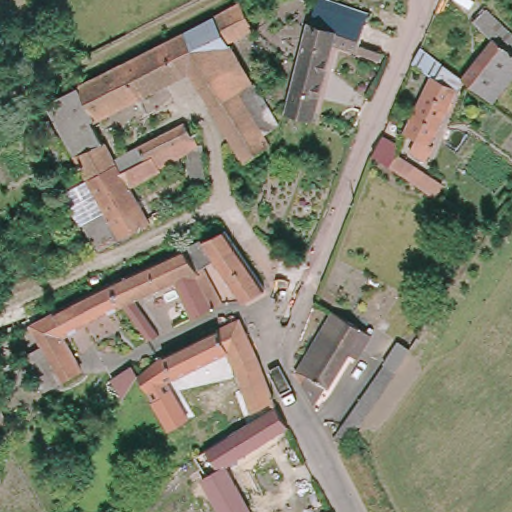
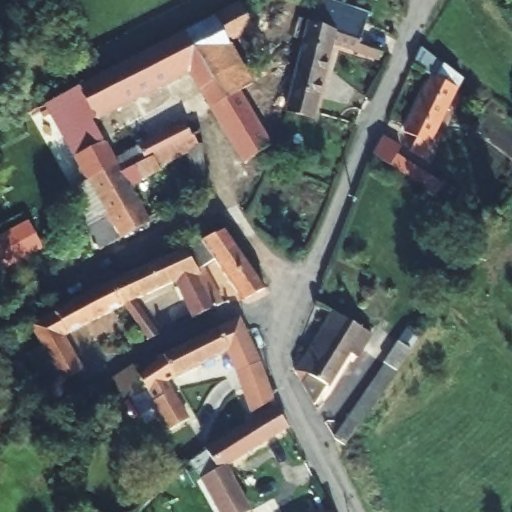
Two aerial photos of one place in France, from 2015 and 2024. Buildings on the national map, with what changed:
unchanged [(261,25),(245,35),(238,40),(282,118),(268,126),(277,142),(252,157),(235,127),(203,72),(102,129),(87,102),(82,93),(105,80),(157,52),(176,41),(197,29),(248,0),(261,25)]
unchanged [(301,75),(301,73),(313,32),(313,30),(321,0),(337,0),(375,13),(367,39),(390,48),(388,55),(341,38),(317,115),(292,107),(301,75)]
demolished [(465,79),(486,46),(463,30),(473,14),(496,30),(488,43),(512,60),(512,82),(499,103),(465,79)]
unchanged [(418,53),(477,92),(472,99),(464,95),(429,148),(433,151),(424,165),(408,154),(413,146),(401,138),(434,84),(412,69),(418,53)]
unchanged [(146,189),(140,180),(130,186),(125,178),(90,196),(48,123),(82,105),(121,173),(194,132),(196,136),(205,132),(211,141),(201,146),(206,154),(146,189)]
unchanged [(381,134),(397,146),(393,154),(438,183),(429,197),(369,156),(381,134)]
unchanged [(125,178),(130,186),(157,237),(124,257),(90,196),(125,178)]
unchanged [(183,260),(233,235),(262,291),(239,303),(217,260),(202,267),(219,305),(210,310),(183,260)]
unchanged [(210,310),(190,321),(169,284),(114,314),(106,325),(97,299),(126,288),(183,260),(210,310)]
unchanged [(106,325),(44,346),(64,380),(44,392),(23,355),(28,353),(14,328),(97,299),(106,325)]
unchanged [(342,458),(334,445),(385,369),(361,353),(352,346),(349,350),(355,354),(316,410),(297,376),(298,374),(326,333),(338,315),(362,331),(368,324),(377,330),(411,354),(342,458)]
unchanged [(255,411),(241,372),(222,338),(127,390),(122,381),(127,378),(132,375),(178,350),(223,325),(238,317),(260,357),(276,399),(255,411)]
unchanged [(157,387),(171,412),(214,440),(210,442),(208,443),(197,449),(160,426),(156,424),(147,428),(132,400),(157,387)]
unchanged [(279,405),(289,425),(220,460),(210,442),(214,440),(279,405)]
unchanged [(226,473),(246,512),(223,512),(209,482),(226,473)]
unchanged [(335,512),(331,512),(334,510),(335,512)]

